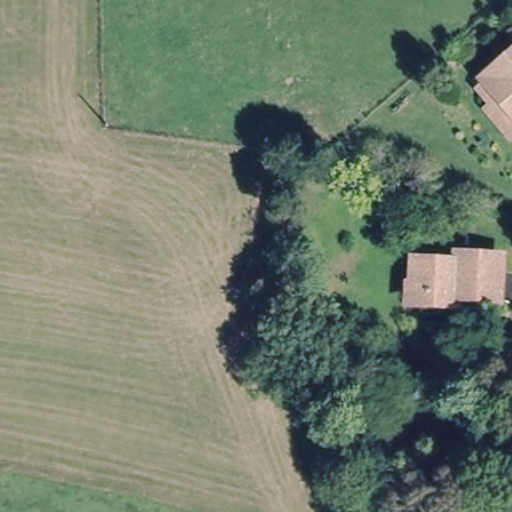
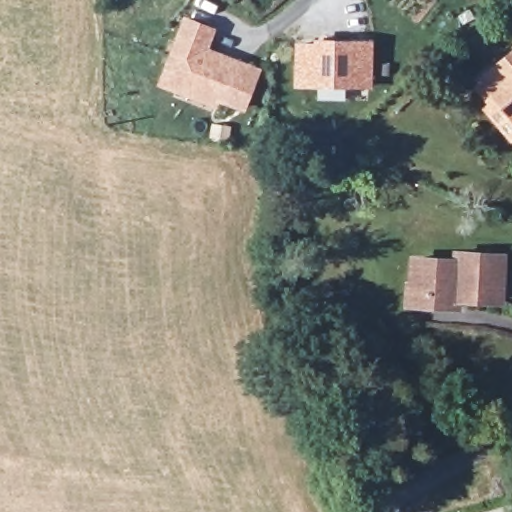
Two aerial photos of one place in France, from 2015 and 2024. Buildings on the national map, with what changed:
new [(175,90),(159,84),(175,39),(183,19),(210,29),(202,49),(255,69),(241,106),(215,97),(213,104),(175,90)]
new [(295,42),(313,44),(313,39),(374,40),(373,88),(293,88),(295,42)]
unchanged [(484,110),(489,106),(476,90),(482,85),(478,80),(496,66),(512,51),(512,137),(509,140),(484,110)]
unchanged [(412,258),(454,260),(455,253),(505,256),(504,271),(502,302),(461,299),(460,306),(411,303),(412,258)]

